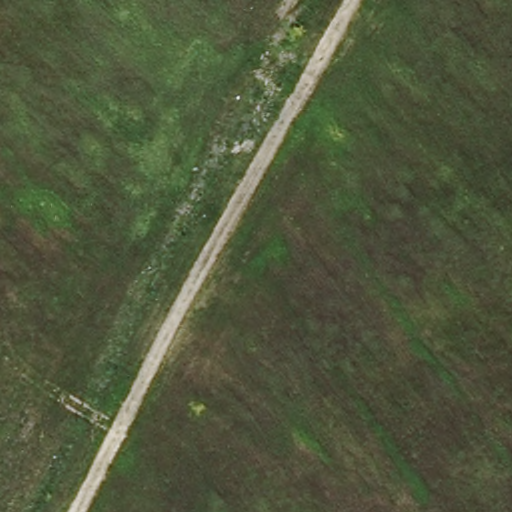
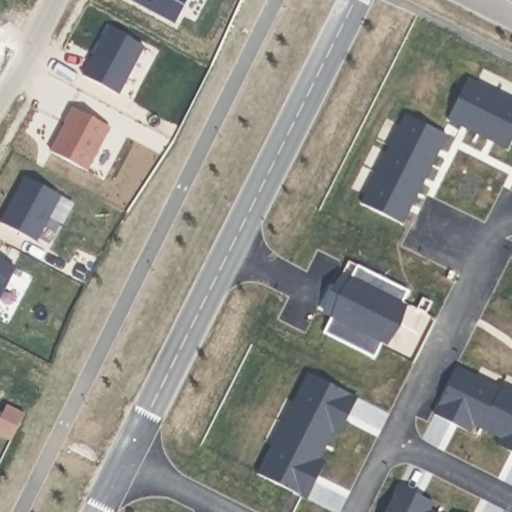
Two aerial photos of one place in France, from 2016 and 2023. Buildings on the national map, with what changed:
new [(137,0),(187,0),(176,21),(137,0)]
new [(109,26),(145,45),(119,94),(83,74),(109,26)]
new [(512,101),(512,141),(508,149),(448,119),(468,79),(512,101)]
new [(67,123),(64,121),(72,106),(110,125),(87,170),(51,151),(67,123)]
new [(407,115),(447,135),(402,224),(362,204),(407,115)]
new [(26,177),(61,196),(36,243),(1,224),(26,177)]
new [(15,268),(0,297),(0,259),(15,268)]
new [(351,279),(342,275),(349,262),(408,291),(402,305),(397,303),(378,339),(383,342),(375,359),(323,334),(351,279)]
new [(475,377),(473,380),(499,393),(500,389),(512,395),(512,444),(455,416),(451,423),(434,415),(458,367),(475,377)]
new [(272,447),(278,449),(301,404),(295,401),(309,373),(355,397),(347,413),(342,412),(309,479),(312,481),(305,498),(258,474),(272,447)]
new [(7,405),(25,413),(10,439),(0,434),(0,418),(7,405)]
new [(399,485),(415,494),(412,501),(433,512),(385,512),(399,485)]

